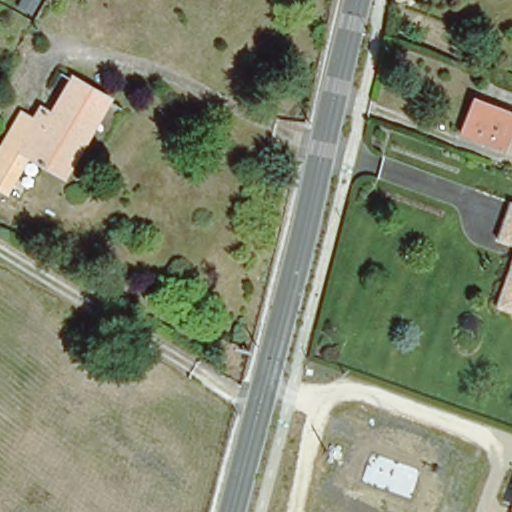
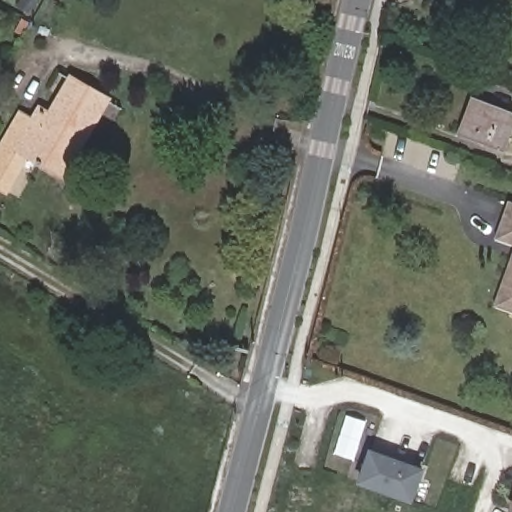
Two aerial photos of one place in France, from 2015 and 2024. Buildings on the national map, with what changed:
unchanged [(0,188),(0,140),(17,111),(29,118),(36,106),(47,112),(67,76),(104,97),(58,175),(24,154),(2,189),(0,188)]
unchanged [(471,98),(512,113),(512,124),(503,147),(459,131),(471,98)]
unchanged [(506,201),(512,204),(512,245),(492,238),(506,201)]
unchanged [(512,245),(512,266),(502,296),(512,300),(512,313),(491,306),(512,245)]
unchanged [(512,266),(512,300),(502,296),(512,266)]
new [(365,448),(416,467),(405,497),(354,478),(365,448)]
unchanged [(512,512),(508,512),(512,500),(512,512)]

